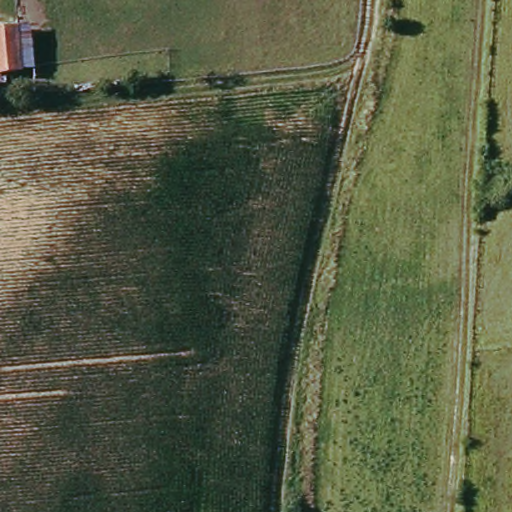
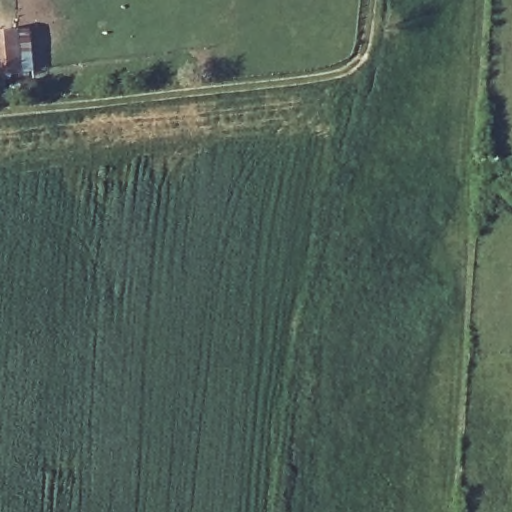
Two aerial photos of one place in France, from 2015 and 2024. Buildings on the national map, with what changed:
unchanged [(34,75),(0,78),(0,38),(29,35),(34,75)]

